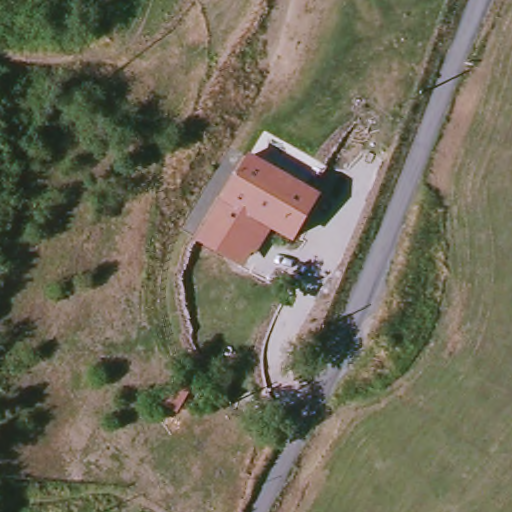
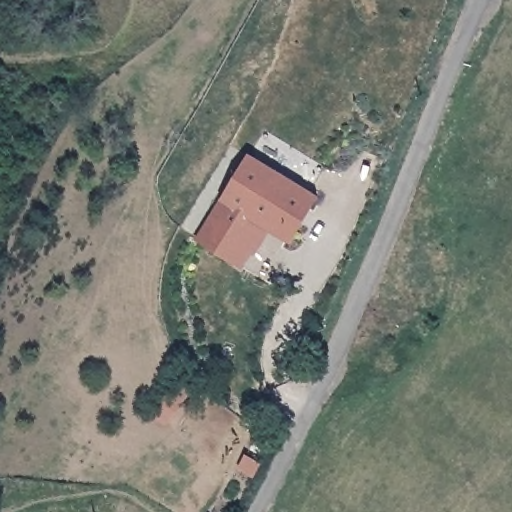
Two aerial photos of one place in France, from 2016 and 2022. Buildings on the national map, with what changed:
unchanged [(320,195),(292,241),(267,227),(242,269),(232,262),(220,284),(206,273),(218,254),(197,241),(251,155),(263,135),(290,148),(278,171),(320,195)]

